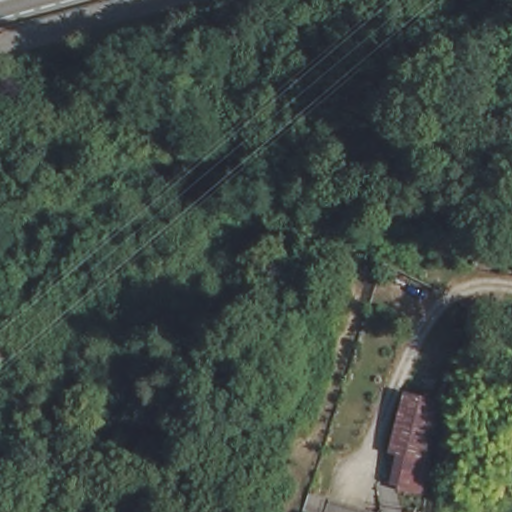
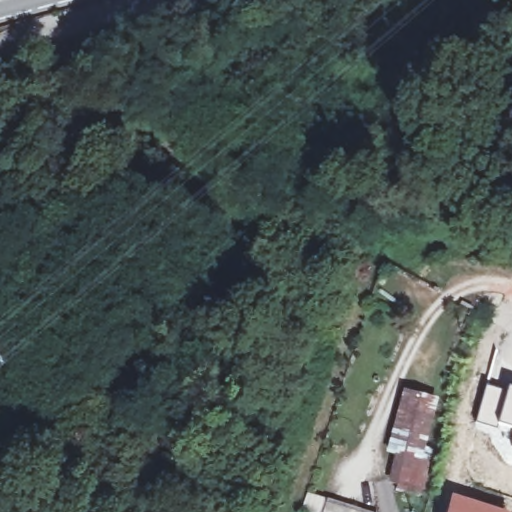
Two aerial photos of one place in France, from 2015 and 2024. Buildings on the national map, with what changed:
new [(497,426),(496,429),(474,424),(485,384),(506,389),(507,386),(512,387),(512,429),(497,426)]
unchanged [(387,495),(396,455),(387,453),(401,393),(440,402),(417,502),(387,495)]
new [(512,439),(512,446),(510,446),(512,439)]
new [(450,494),(511,512),(445,512),(450,494)]
unchanged [(325,511),(328,512),(325,512),(325,511)]

